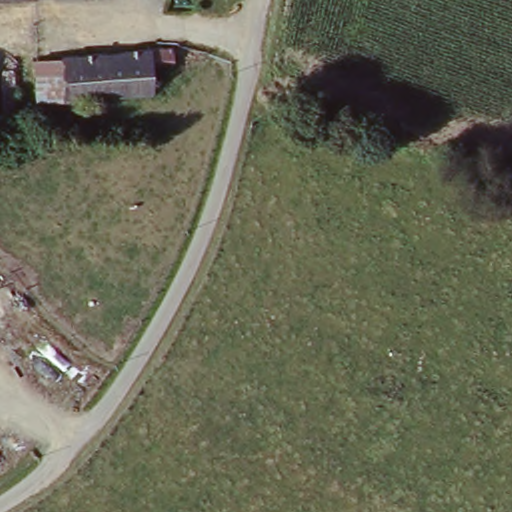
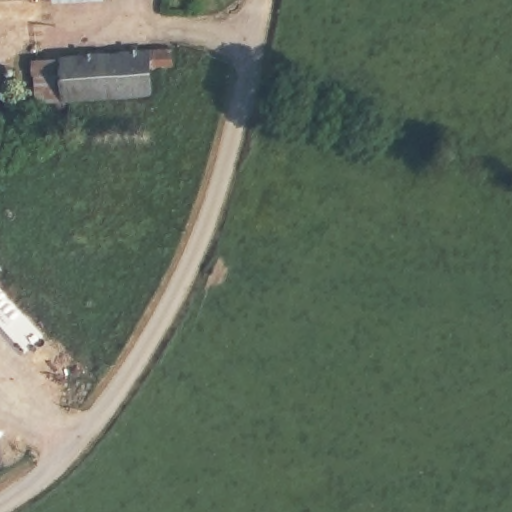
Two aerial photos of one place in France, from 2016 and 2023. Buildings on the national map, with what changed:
unchanged [(151,49),(173,48),(174,68),(151,69),(153,94),(65,100),(64,55),(151,49)]

